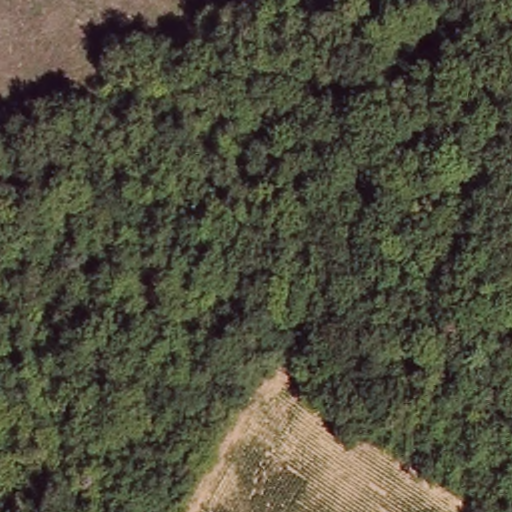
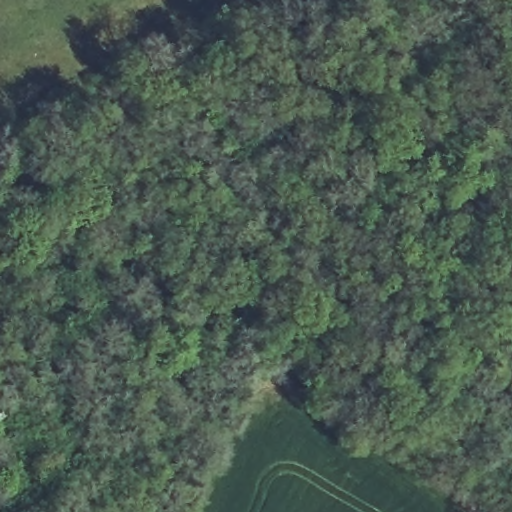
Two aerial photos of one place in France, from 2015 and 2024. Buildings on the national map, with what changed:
[]

